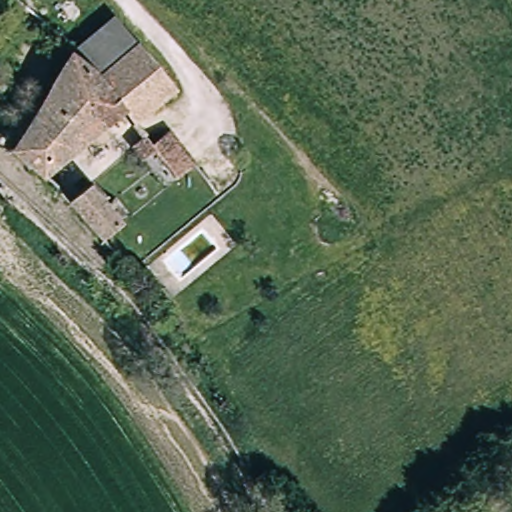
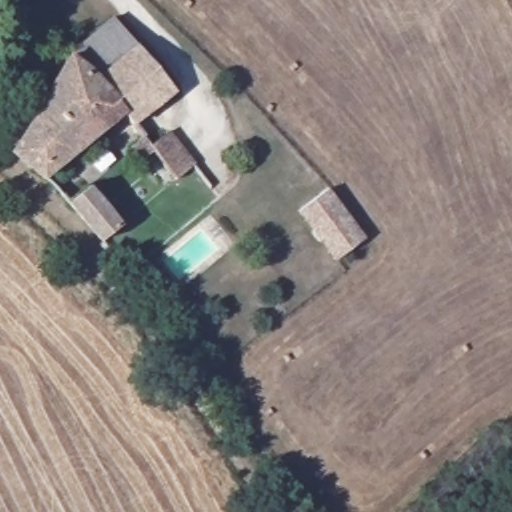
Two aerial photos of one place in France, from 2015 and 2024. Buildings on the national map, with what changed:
unchanged [(69,51),(112,17),(136,43),(97,75),(92,69),(70,53),(69,51)]
unchanged [(42,179),(8,150),(70,53),(92,69),(97,75),(136,43),(175,91),(135,124),(127,112),(42,179)]
unchanged [(173,180),(147,145),(168,129),(195,163),(173,180)]
unchanged [(85,184),(103,204),(111,198),(127,215),(97,240),(64,203),(85,184)]
new [(329,186),(368,234),(337,259),(299,210),(329,186)]

